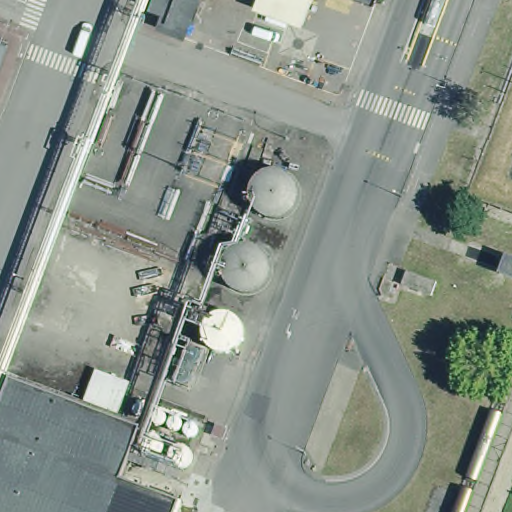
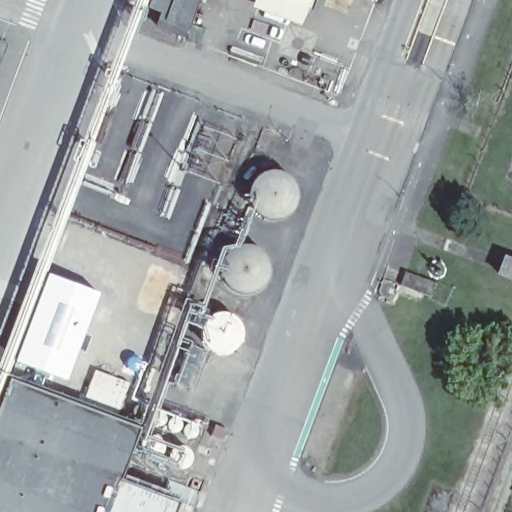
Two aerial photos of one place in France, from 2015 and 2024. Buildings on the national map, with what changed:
unchanged [(156,0),(201,0),(186,37),(160,27),(166,12),(153,7),(156,0)]
unchanged [(310,9),(286,0),(313,0),(310,9)]
unchanged [(376,3),(368,0),(377,0),(376,3)]
unchanged [(8,39),(0,62),(0,37),(8,39)]
unchanged [(512,261),(512,280),(497,274),(503,257),(512,261)]
unchanged [(432,295),(400,283),(405,270),(436,281),(432,295)]
new [(47,272),(100,293),(66,381),(13,361),(47,272)]
unchanged [(127,381),(116,411),(84,399),(94,370),(127,381)]
unchanged [(13,372),(84,399),(116,411),(143,421),(123,474),(183,497),(177,512),(0,512),(0,408),(13,372)]

